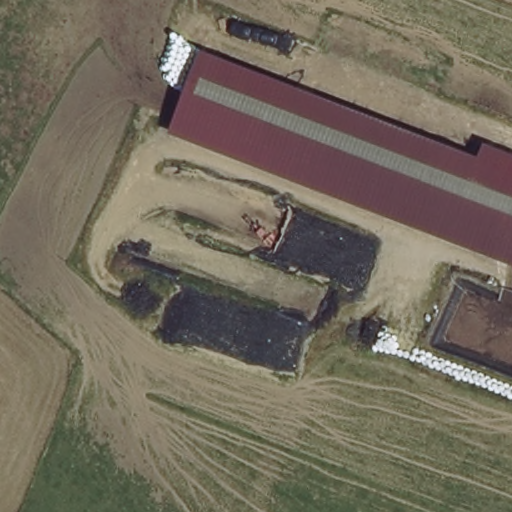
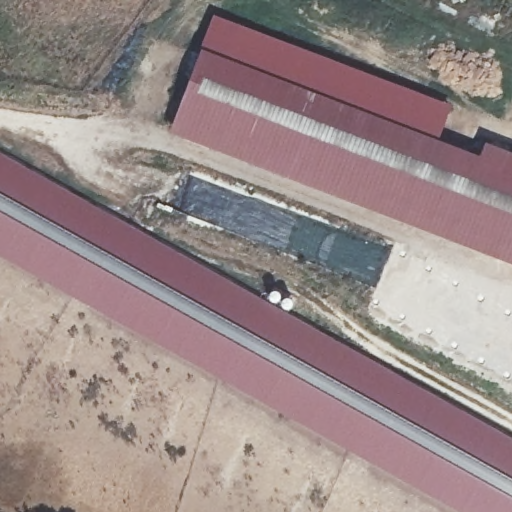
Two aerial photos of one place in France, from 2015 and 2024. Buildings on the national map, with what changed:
unchanged [(480,156),(487,146),(512,155),(512,265),(170,133),(205,52),(480,156)]
new [(0,258),(0,153),(512,439),(512,512),(453,512),(0,258)]

